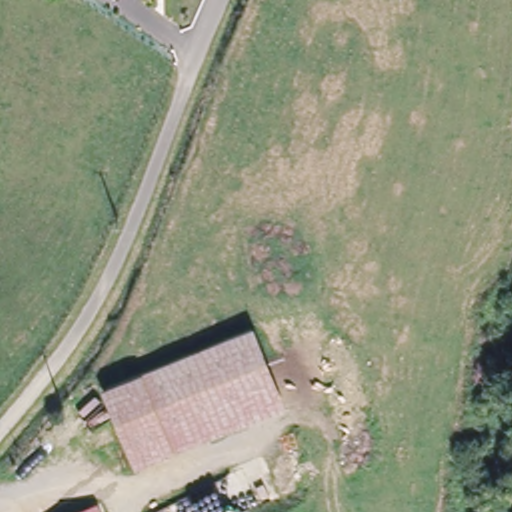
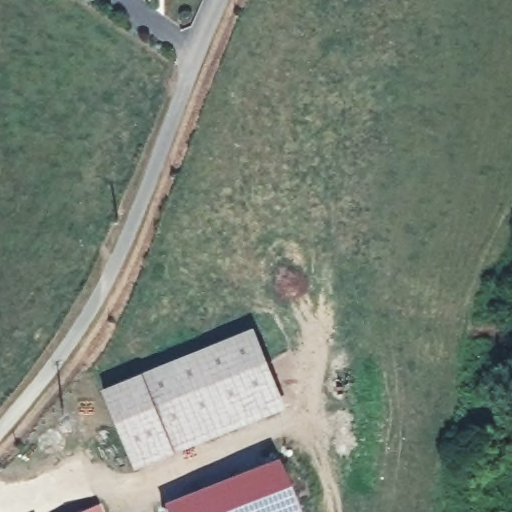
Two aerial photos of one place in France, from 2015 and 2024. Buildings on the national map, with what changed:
unchanged [(130,456),(105,394),(253,336),(279,400),(130,456)]
new [(297,512),(164,512),(160,501),(274,454),(297,512)]
unchanged [(96,498),(102,512),(61,512),(96,498)]

